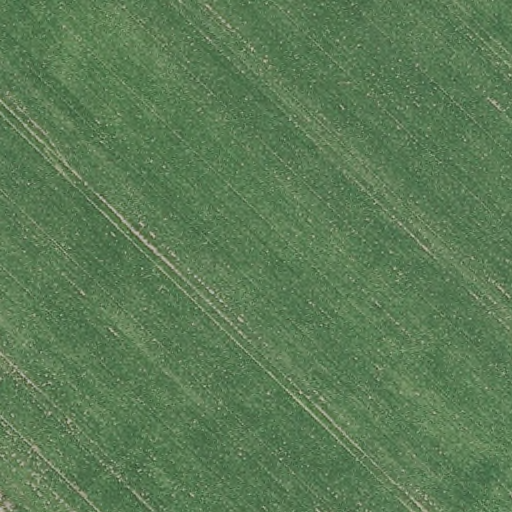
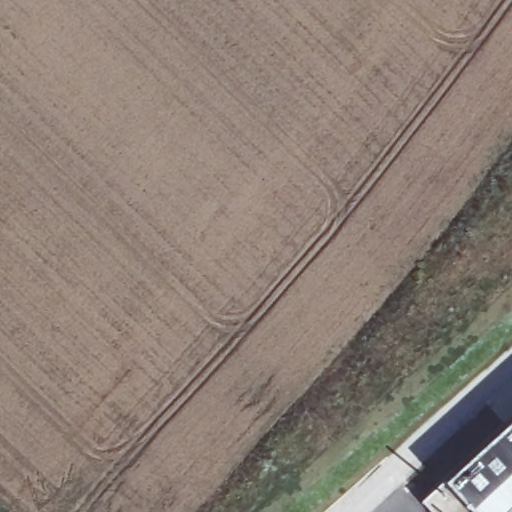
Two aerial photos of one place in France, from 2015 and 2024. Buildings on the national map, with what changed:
new [(446,480),(512,421),(512,512),(475,512),(446,480)]
new [(423,501),(446,480),(475,512),(433,512),(423,501)]

